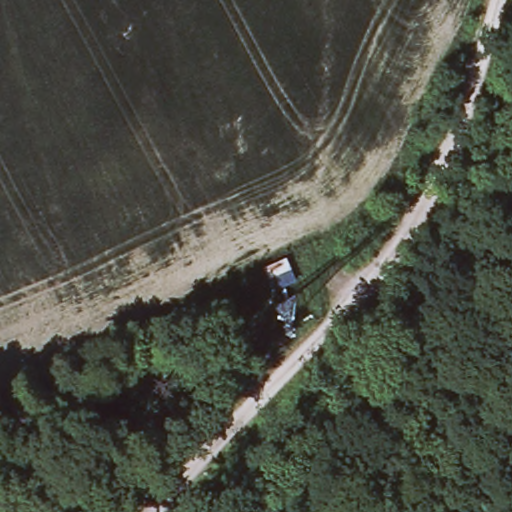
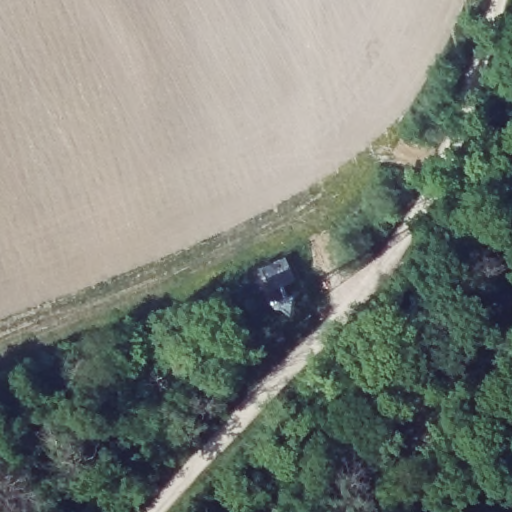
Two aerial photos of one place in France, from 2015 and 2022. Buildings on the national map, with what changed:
unchanged [(286,256),(296,280),(276,291),(264,268),(286,256)]

